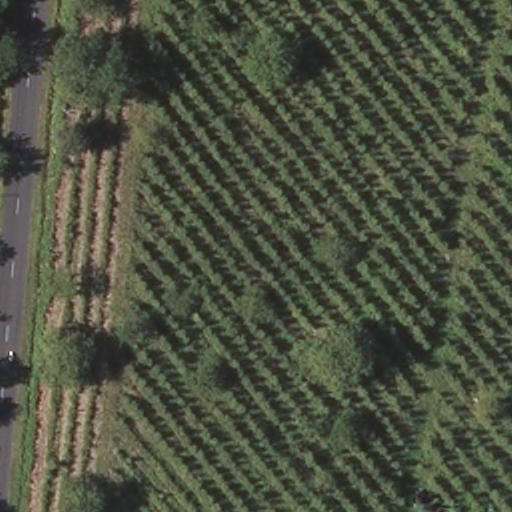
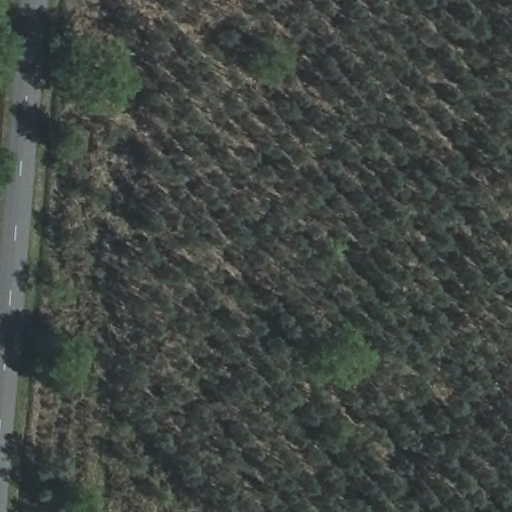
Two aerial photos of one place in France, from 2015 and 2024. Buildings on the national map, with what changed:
[]

